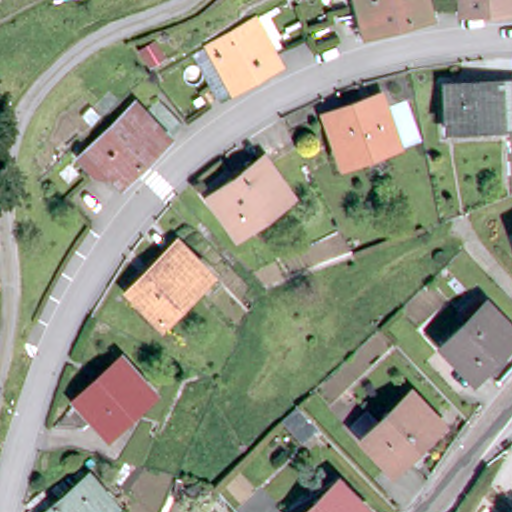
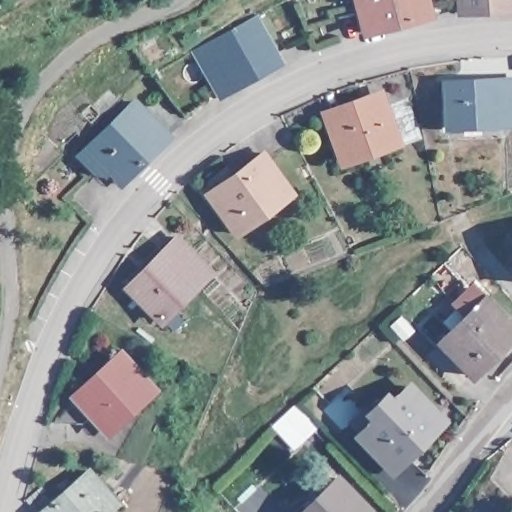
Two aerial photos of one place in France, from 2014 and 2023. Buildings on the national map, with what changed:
unchanged [(432,23),(370,38),(361,0),(428,0),(432,23)]
unchanged [(502,8),(500,8),(467,11),(466,0),(512,0),(512,7),(502,8)]
unchanged [(274,26),(287,54),(277,58),(281,66),(219,95),(207,71),(222,63),(218,55),(240,43),(267,29),(274,26)]
unchanged [(512,93),(512,125),(459,130),(458,85),(511,81),(512,93)]
unchanged [(404,106),(412,141),(339,164),(325,118),(359,108),(377,102),(379,109),(380,113),(404,106)]
unchanged [(135,115),(137,118),(147,128),(162,114),(182,135),(120,193),(87,159),(127,121),(135,115)]
unchanged [(297,202),(240,243),(210,202),(269,162),(297,202)]
unchanged [(215,285),(167,329),(132,292),(179,248),(215,285)]
unchanged [(462,319),(482,300),(512,332),(512,352),(477,386),(445,352),(470,328),(462,319)]
unchanged [(80,402),(128,355),(160,389),(111,435),(96,419),(86,430),(61,428),(80,402)]
unchanged [(382,426),(414,394),(446,426),(398,474),(355,431),(371,415),(382,426)]
unchanged [(279,421),(294,406),(317,430),(301,445),(279,421)]
unchanged [(63,512),(95,484),(121,512),(63,512)]
unchanged [(313,512),(341,487),(364,512),(313,512)]

